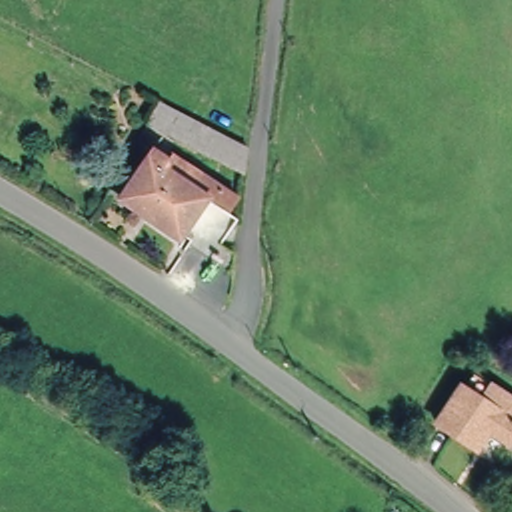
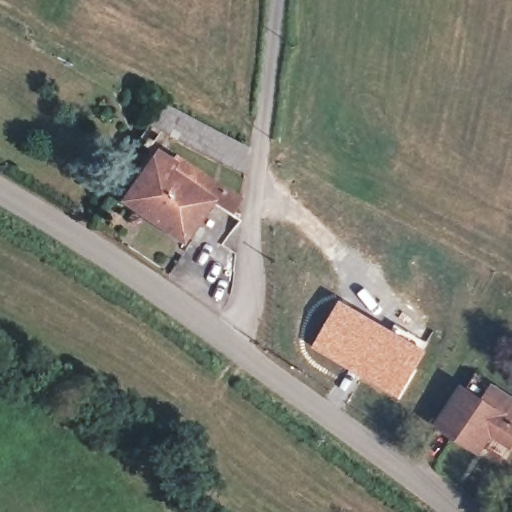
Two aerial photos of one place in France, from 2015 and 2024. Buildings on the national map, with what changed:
unchanged [(246,149),(242,178),(150,125),(163,103),(246,149)]
unchanged [(166,162),(160,174),(190,192),(195,182),(229,201),(222,213),(201,200),(176,241),(121,205),(151,153),(166,162)]
new [(340,298),(405,335),(426,349),(398,399),(311,346),(340,298)]
unchanged [(512,453),(503,447),(492,461),(455,435),(487,388),(512,403),(512,453)]

